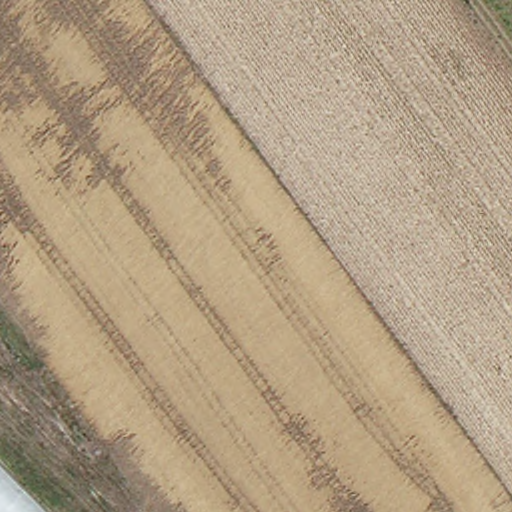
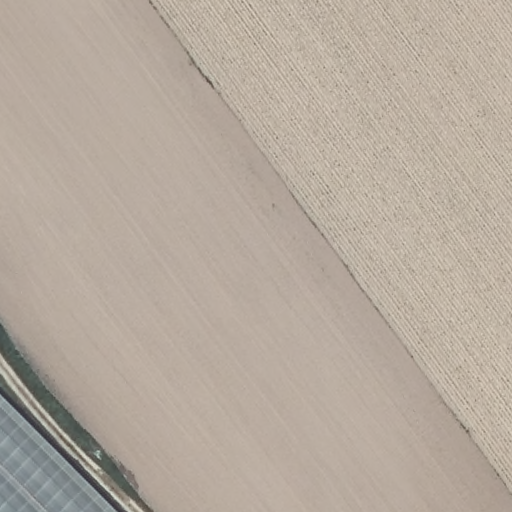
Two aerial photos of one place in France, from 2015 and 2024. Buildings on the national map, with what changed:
new [(116,512),(49,512),(0,462),(0,396),(116,512)]
unchanged [(49,512),(0,512),(0,462),(49,512)]

